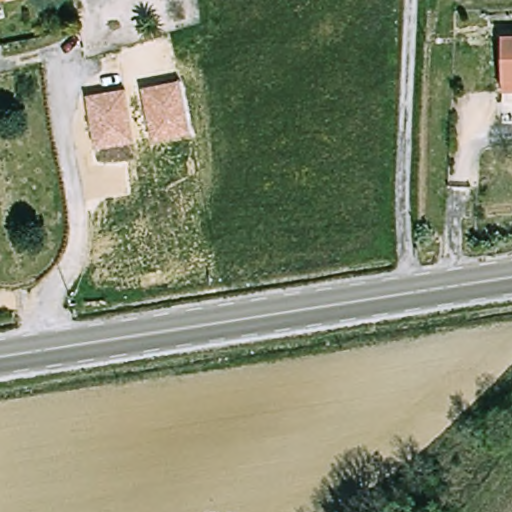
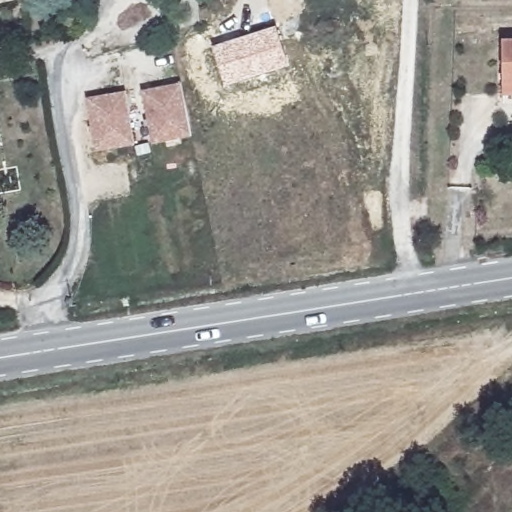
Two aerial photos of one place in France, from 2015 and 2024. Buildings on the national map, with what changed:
unchanged [(16,0),(0,4),(0,0),(16,0)]
new [(276,26),(289,65),(224,86),(211,48),(276,26)]
unchanged [(503,46),(512,44),(512,91),(512,89),(503,46)]
unchanged [(153,143),(141,89),(181,81),(191,136),(153,143)]
unchanged [(86,98),(126,91),(136,144),(95,151),(86,98)]

